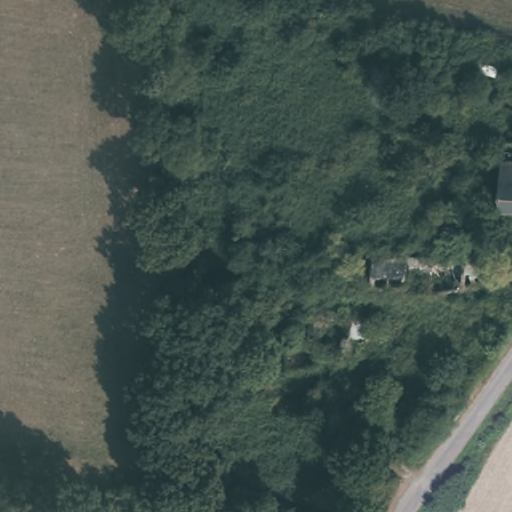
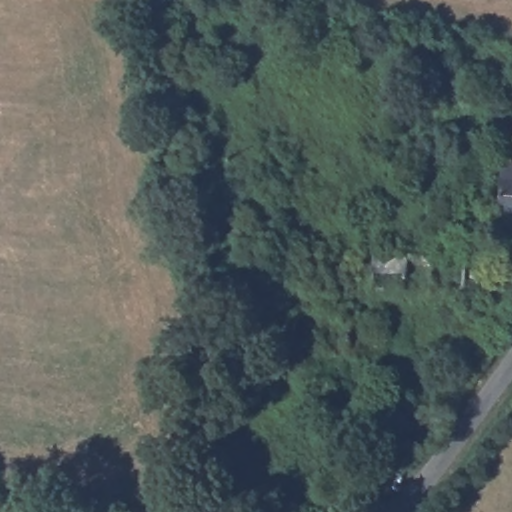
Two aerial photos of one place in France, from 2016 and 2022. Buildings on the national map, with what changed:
unchanged [(503,152),(510,147),(512,147),(512,216),(502,216),(503,152)]
unchanged [(225,247),(194,252),(186,211),(216,204),(225,247)]
unchanged [(491,282),(434,303),(368,297),(368,276),(321,275),(320,259),(418,261),(491,255),(491,282)]
unchanged [(370,326),(368,337),(386,338),(385,363),(354,358),(318,356),(314,377),(285,373),(289,348),(295,310),(356,322),(370,326)]

